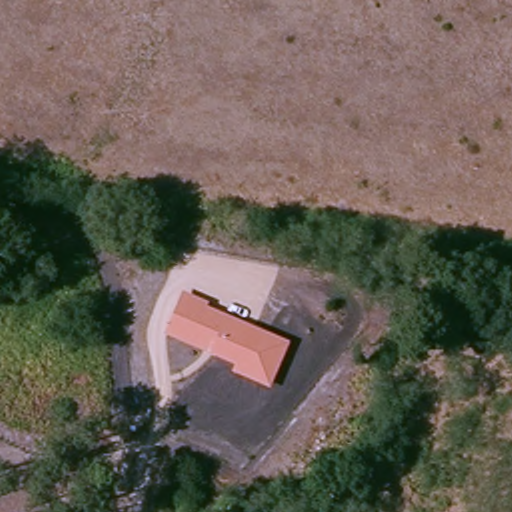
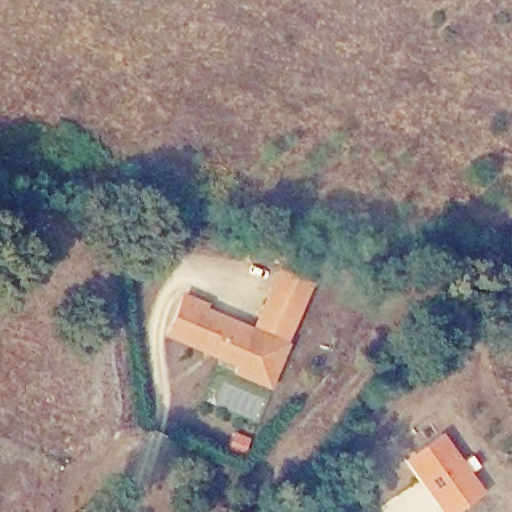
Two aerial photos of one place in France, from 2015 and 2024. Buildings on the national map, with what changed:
unchanged [(234,366),(163,335),(182,292),(207,304),(206,307),(288,342),(268,390),(231,374),(234,366)]
new [(442,434),(485,493),(457,512),(441,512),(405,461),(442,434)]

